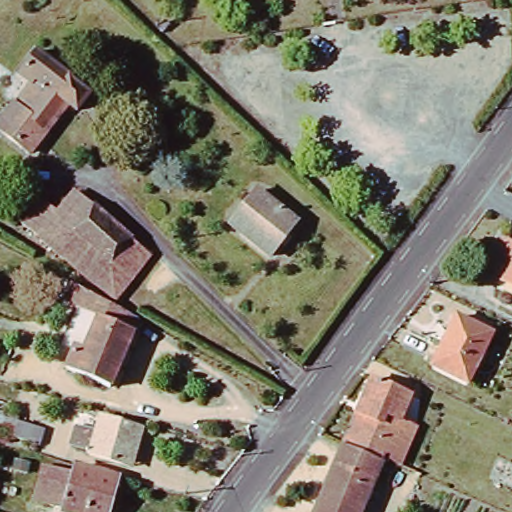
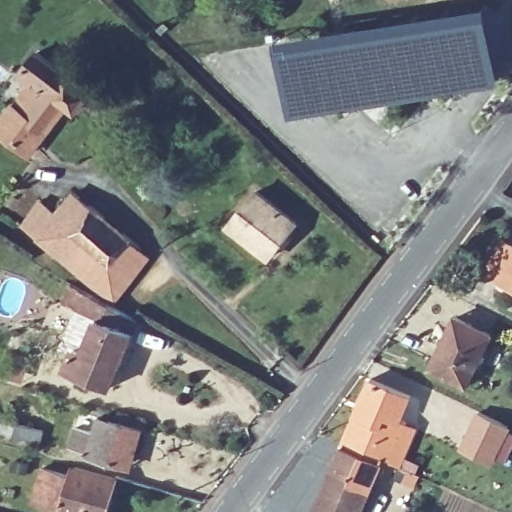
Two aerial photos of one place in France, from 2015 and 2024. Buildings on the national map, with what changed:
new [(486,4),(499,86),(288,119),(276,38),(486,4)]
unchanged [(68,108),(31,154),(0,129),(0,123),(32,83),(22,74),(39,53),(49,62),(72,81),(70,83),(88,99),(75,114),(68,108)]
unchanged [(119,299),(26,223),(46,199),(63,213),(80,192),(155,255),(119,299)]
unchanged [(259,193),(297,223),(269,259),(231,229),(259,193)]
unchanged [(494,267),(505,242),(512,245),(512,284),(504,281),(502,278),(492,274),(494,267)]
unchanged [(100,319),(64,302),(71,282),(114,305),(142,321),(121,368),(88,354),(100,319)]
unchanged [(432,368),(454,317),(491,333),(468,384),(432,368)]
unchanged [(121,368),(113,387),(66,369),(75,349),(88,354),(121,368)]
unchanged [(382,457),(380,460),(343,445),(370,380),(409,395),(393,433),(399,436),(409,439),(399,464),(389,460),(382,457)]
new [(512,429),(512,449),(504,465),(459,444),(477,409),(512,429)]
unchanged [(72,448),(78,426),(100,432),(104,417),(144,429),(134,466),(72,448)]
unchanged [(41,429),(37,443),(14,437),(18,422),(41,429)]
unchanged [(316,512),(343,445),(380,460),(359,512),(316,512)]
unchanged [(73,466),(116,477),(107,512),(69,512),(32,502),(41,467),(71,475),(73,466)]

